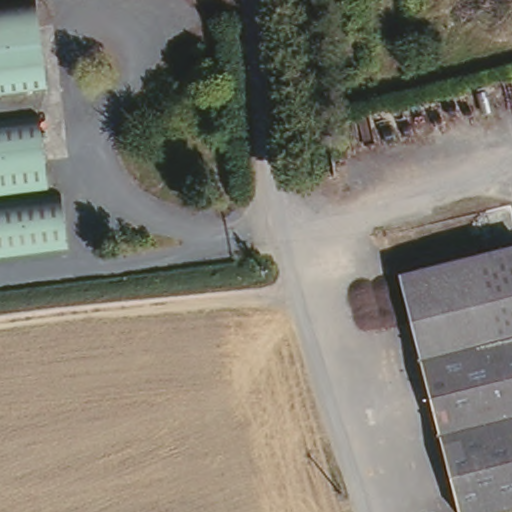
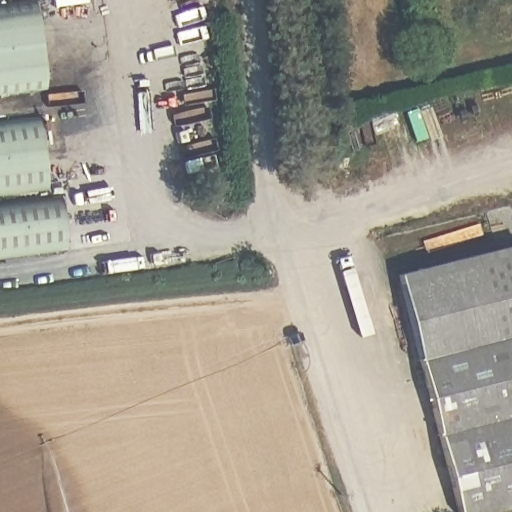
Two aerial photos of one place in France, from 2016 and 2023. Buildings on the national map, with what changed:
unchanged [(0,78),(0,0),(37,0),(49,72),(0,78)]
unchanged [(0,187),(0,109),(36,105),(49,182),(0,187)]
unchanged [(69,239),(0,248),(0,194),(62,187),(69,239)]
unchanged [(478,512),(461,512),(400,268),(512,240),(512,503),(478,512)]

